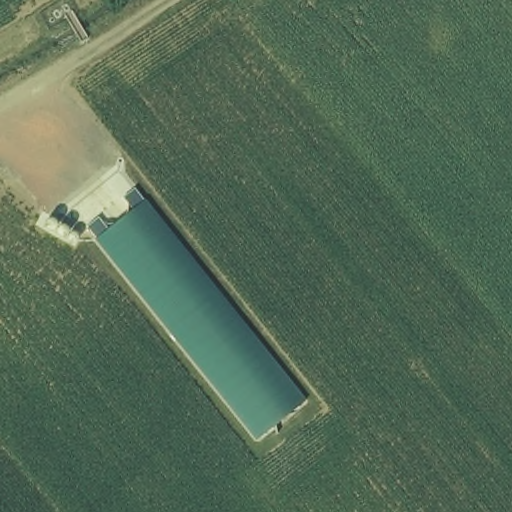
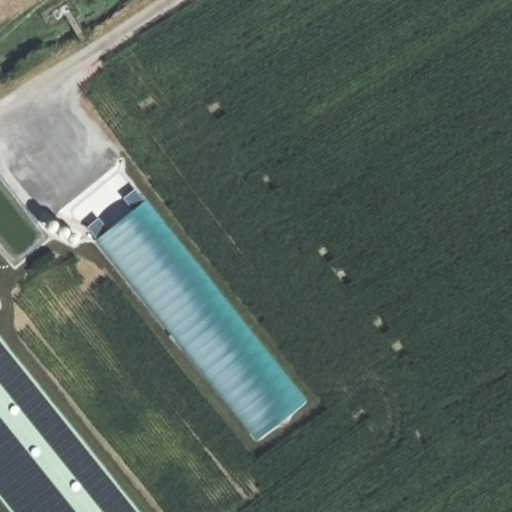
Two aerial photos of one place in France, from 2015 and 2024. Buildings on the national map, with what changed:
unchanged [(305,401),(257,440),(86,227),(98,217),(108,229),(132,210),(123,197),(136,189),(305,401)]
new [(12,512),(0,497),(0,340),(140,512),(12,512)]

